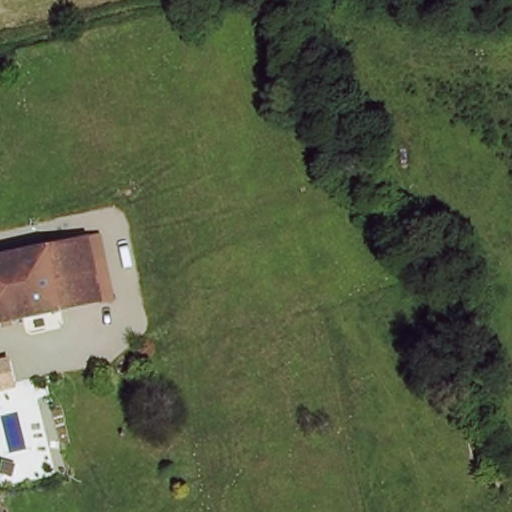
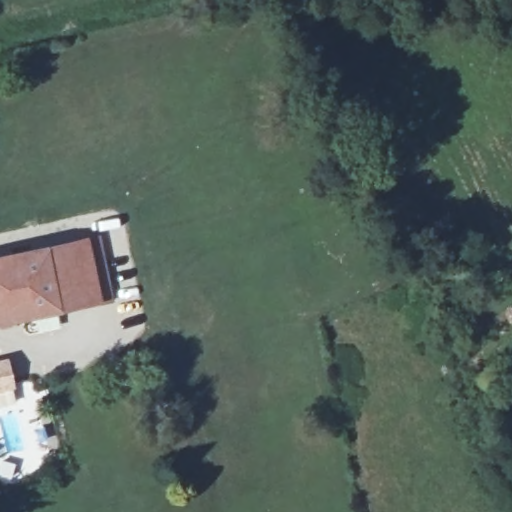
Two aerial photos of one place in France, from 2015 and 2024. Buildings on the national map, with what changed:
unchanged [(0,325),(0,261),(88,240),(93,264),(104,261),(113,300),(0,325)]
unchanged [(0,399),(0,371),(13,368),(19,395),(0,399)]

